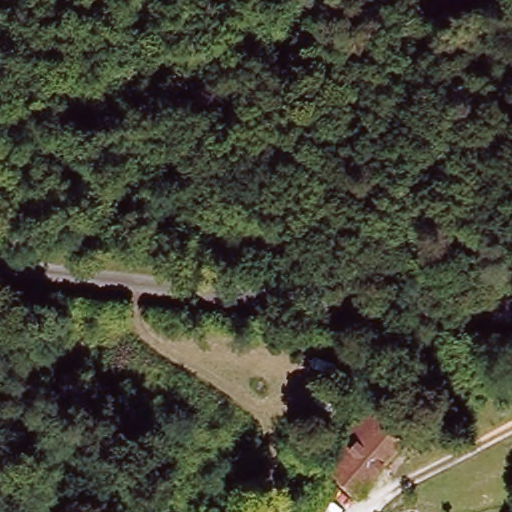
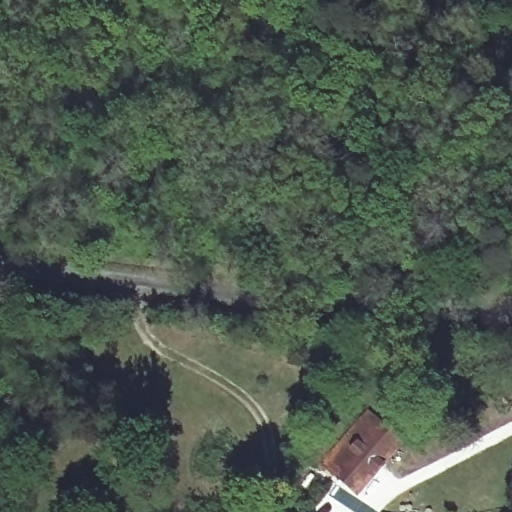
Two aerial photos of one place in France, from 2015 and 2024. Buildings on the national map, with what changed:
unchanged [(400,446),(350,494),(323,466),(366,414),(400,446)]

